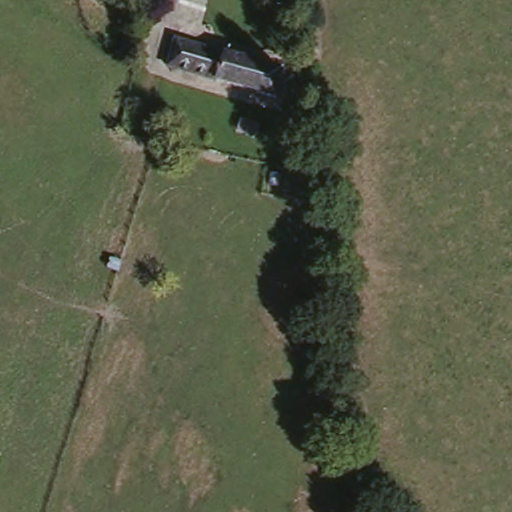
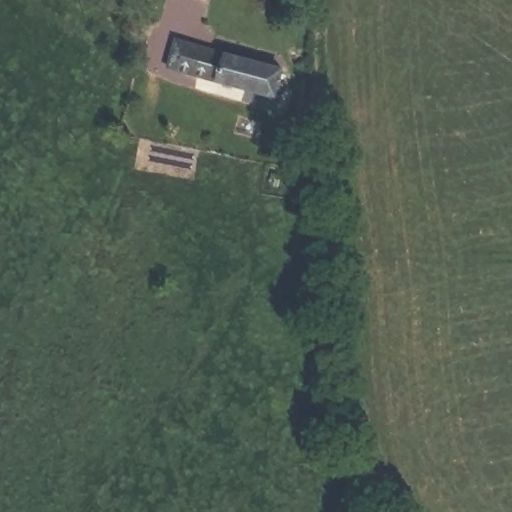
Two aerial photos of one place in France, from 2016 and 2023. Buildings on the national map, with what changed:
unchanged [(179,44),(285,70),(274,104),(167,73),(179,44)]

